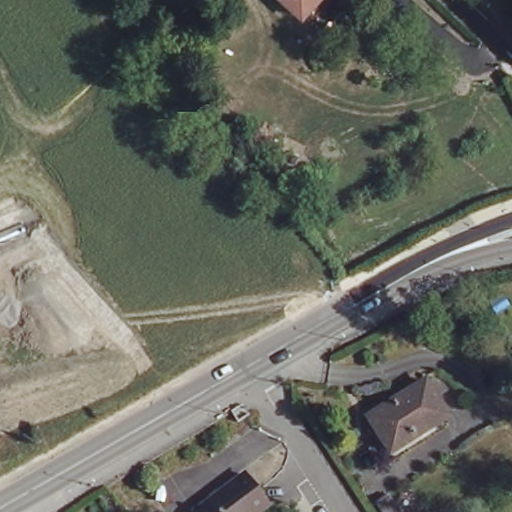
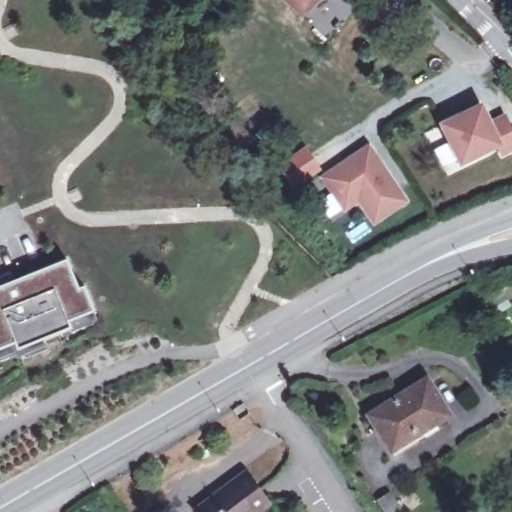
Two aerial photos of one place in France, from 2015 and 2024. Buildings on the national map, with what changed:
unchanged [(315,0),(302,14),(287,0),(315,0)]
new [(437,123),(482,101),(490,118),(505,111),(512,124),(512,151),(500,157),(495,148),(460,166),(457,160),(442,167),(433,149),(447,142),(437,123)]
new [(324,171),(370,140),(411,201),(374,226),(357,204),(344,212),(317,174),(324,171)]
new [(306,144),(324,171),(317,174),(295,190),(278,166),(306,144)]
new [(11,273),(15,282),(68,261),(80,290),(85,288),(95,313),(95,314),(97,322),(93,324),(90,315),(69,322),(72,330),(22,350),(25,357),(16,360),(10,347),(0,351),(0,277),(11,273)]
unchanged [(369,415),(427,380),(450,415),(417,436),(415,432),(390,448),(369,415)]
unchanged [(269,505),(260,512),(196,512),(196,511),(245,474),(269,505)]
unchanged [(402,512),(384,512),(378,502),(390,493),(402,512)]

